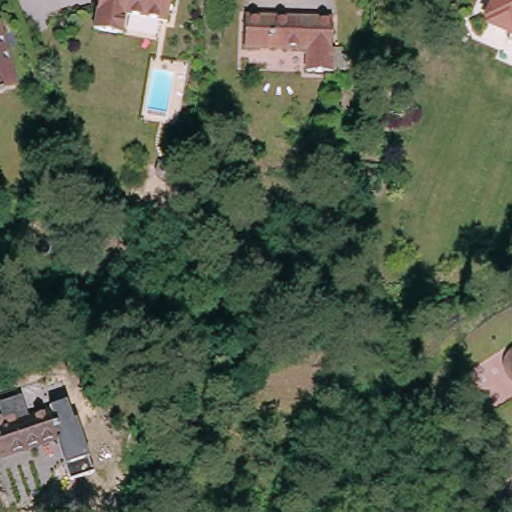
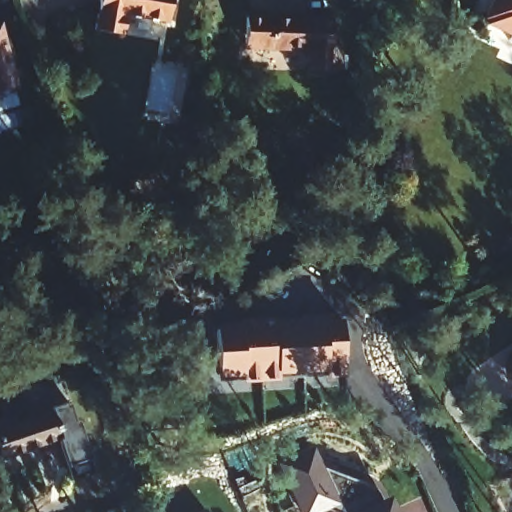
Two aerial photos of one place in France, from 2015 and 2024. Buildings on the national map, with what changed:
unchanged [(120,10),(115,30),(87,24),(92,0),(166,0),(162,17),(120,10)]
unchanged [(481,29),(492,0),(512,0),(512,39),(481,29)]
unchanged [(336,9),(334,60),(307,59),(307,39),(270,37),(271,7),(336,9)]
unchanged [(0,92),(0,20),(18,87),(0,92)]
new [(215,325),(242,324),(242,318),(273,317),(274,322),(297,321),(297,315),(330,313),(330,319),(341,318),(344,372),(217,378),(215,325)]
unchanged [(512,372),(508,367),(506,362),(512,352),(512,373),(512,372)]
unchanged [(6,419),(39,406),(36,397),(54,390),(60,392),(72,421),(0,454),(0,409),(1,409),(6,419)]
new [(67,465),(57,427),(71,421),(77,421),(89,459),(93,474),(70,481),(67,465)]
new [(322,510),(316,512),(300,512),(281,467),(302,458),(307,467),(356,482),(365,486),(370,490),(372,492),(382,512),(328,512),(322,510)]
new [(207,512),(199,512),(206,509),(207,512)]

